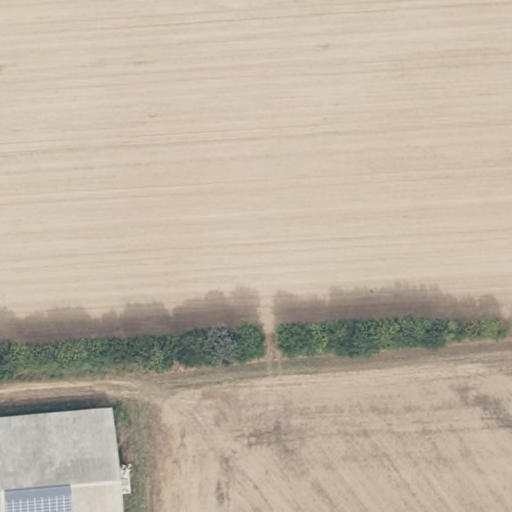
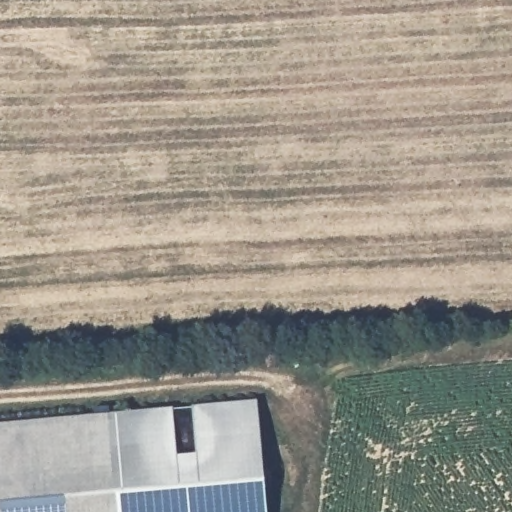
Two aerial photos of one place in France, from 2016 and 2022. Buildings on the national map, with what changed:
new [(110,412),(110,410),(257,397),(267,512),(118,512),(110,412)]
unchanged [(118,512),(0,512),(0,422),(110,412),(118,512)]

